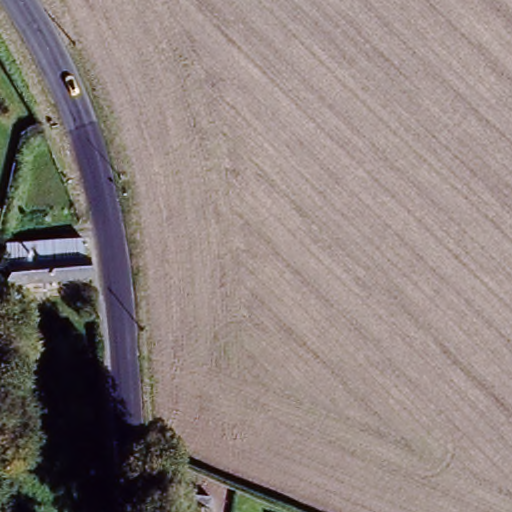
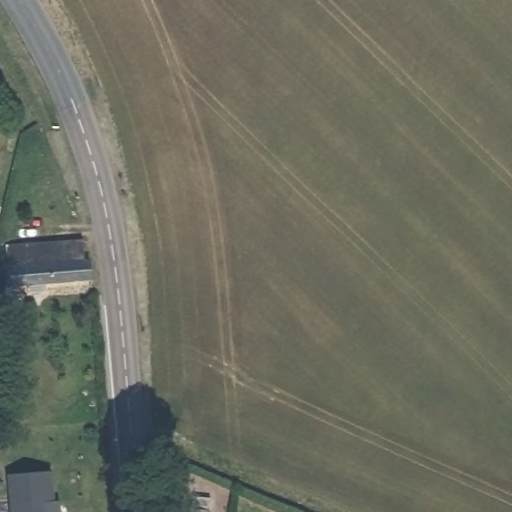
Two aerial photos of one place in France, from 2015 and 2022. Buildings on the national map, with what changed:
unchanged [(17,302),(4,303),(0,281),(0,268),(11,265),(8,246),(79,238),(83,257),(92,257),(94,277),(17,289),(17,302)]
demolished [(100,456),(100,468),(107,467),(109,495),(85,497),(82,470),(87,470),(86,457),(100,456)]
new [(51,471),(55,501),(61,501),(62,512),(12,512),(9,475),(51,471)]
unchanged [(187,498),(202,501),(202,512),(186,512),(187,498)]

